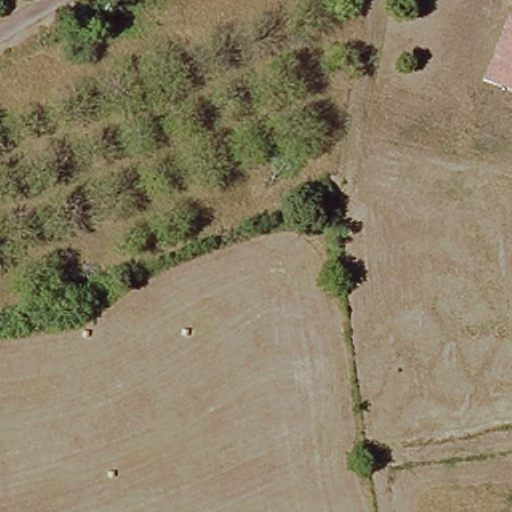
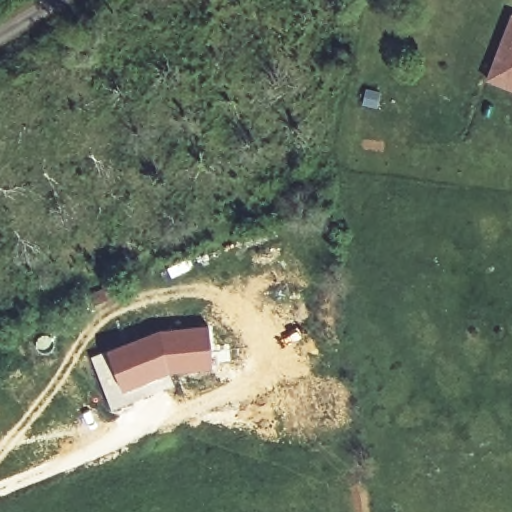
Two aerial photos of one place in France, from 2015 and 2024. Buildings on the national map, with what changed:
unchanged [(512,15),(512,91),(485,80),(511,15),(512,15)]
new [(161,330),(207,326),(211,369),(168,372),(122,390),(106,352),(161,330)]

